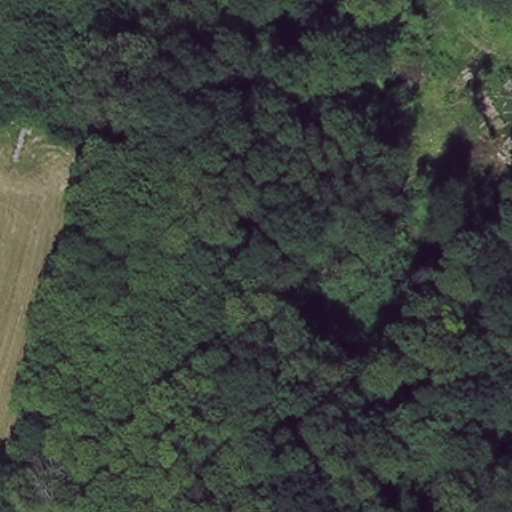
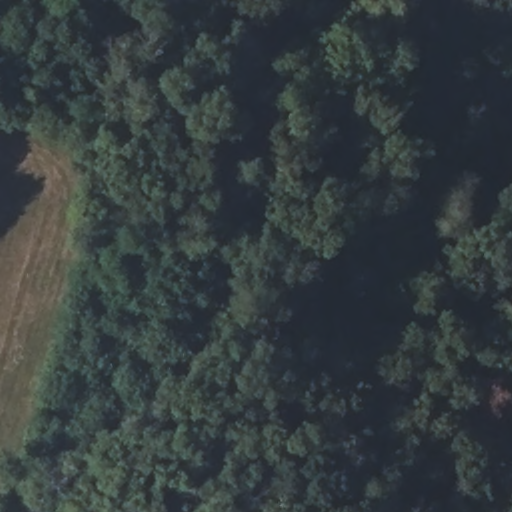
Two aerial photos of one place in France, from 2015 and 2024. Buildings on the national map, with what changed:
[]

